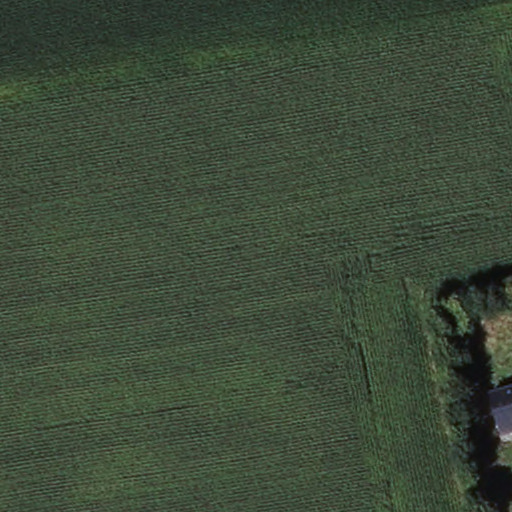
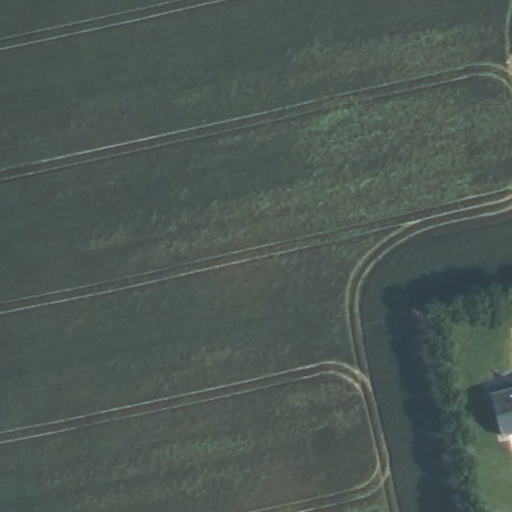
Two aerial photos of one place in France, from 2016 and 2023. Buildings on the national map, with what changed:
unchanged [(512,391),(512,434),(502,437),(491,397),(512,391)]

